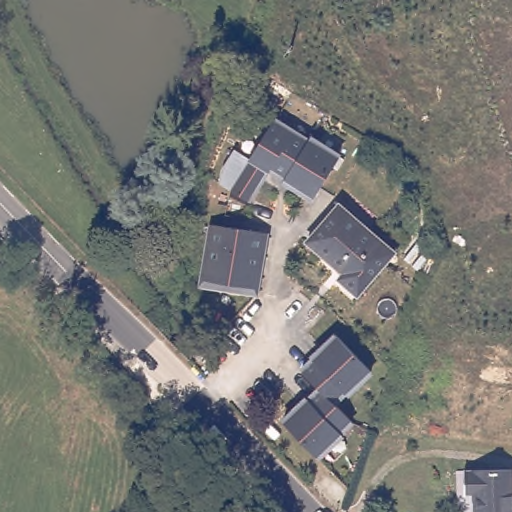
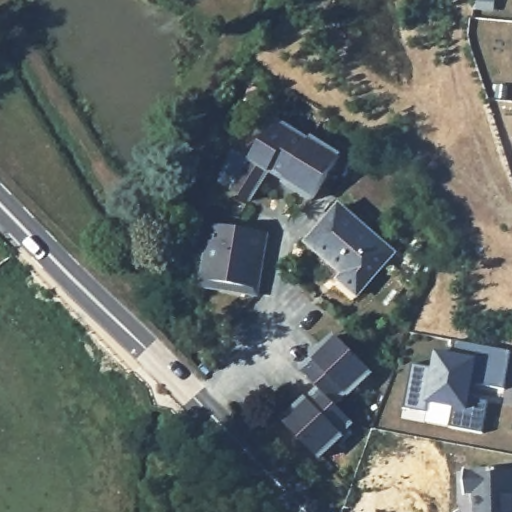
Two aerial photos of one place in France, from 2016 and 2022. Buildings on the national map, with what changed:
unchanged [(214,180),(252,115),(270,124),(273,119),(307,139),(310,134),(340,153),(310,202),(267,175),(250,204),(214,180)]
unchanged [(340,205),(395,254),(357,295),(341,280),(345,275),(308,243),(340,205)]
unchanged [(258,298),(204,289),(216,224),(269,235),(258,298)]
unchanged [(339,332),(374,372),(337,406),(354,425),(317,458),(283,420),(316,389),(300,370),(339,332)]
new [(412,365),(435,370),(438,354),(452,357),(456,342),(512,353),(504,391),(472,385),(469,399),(487,403),(482,435),(450,429),(453,408),(430,404),(427,414),(404,410),(412,365)]
unchanged [(466,494),(465,473),(512,471),(512,512),(476,512),(475,494),(466,494)]

